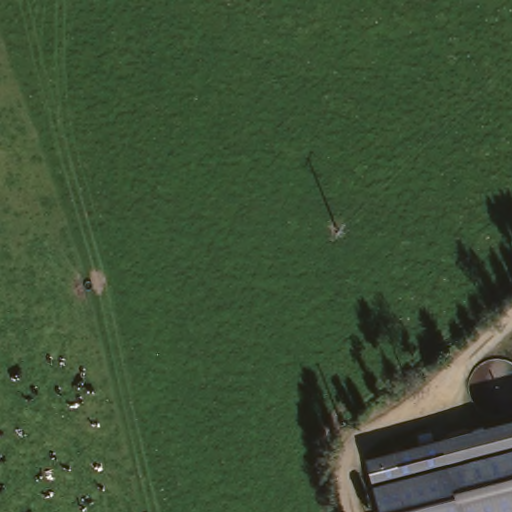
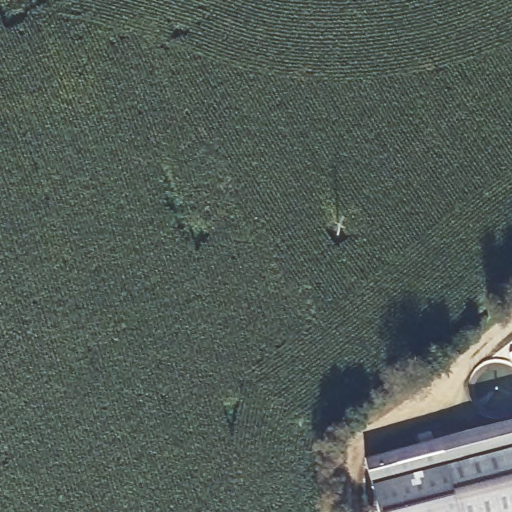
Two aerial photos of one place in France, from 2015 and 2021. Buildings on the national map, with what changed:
unchanged [(360,462),(512,423),(512,512),(374,512),(360,462)]

